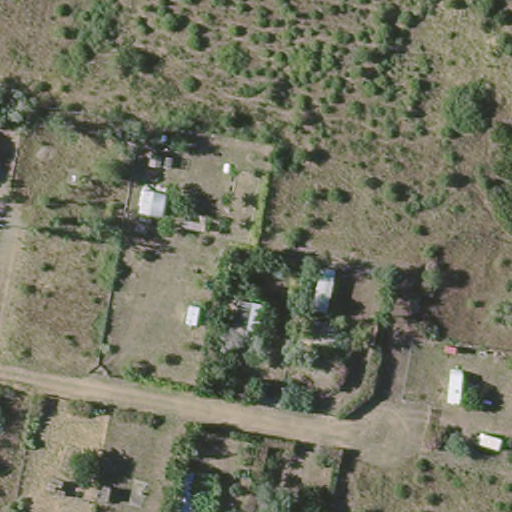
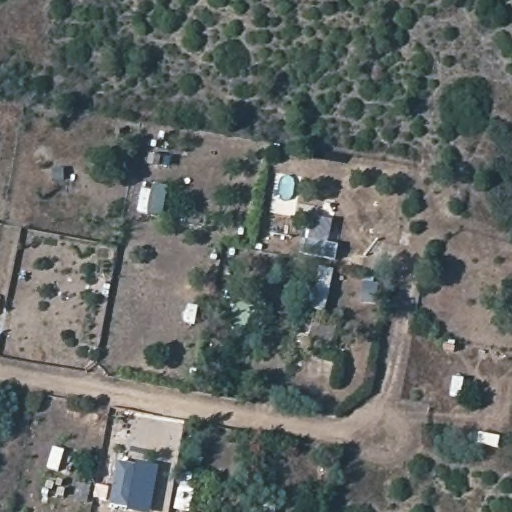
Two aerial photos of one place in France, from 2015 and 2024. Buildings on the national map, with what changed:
unchanged [(251,302),(246,328),(231,326),(237,300),(251,302)]
unchanged [(323,350),(318,380),(301,378),(306,345),(323,350)]
new [(137,463),(160,468),(152,512),(129,512),(130,510),(111,506),(120,463),(136,466),(137,463)]

